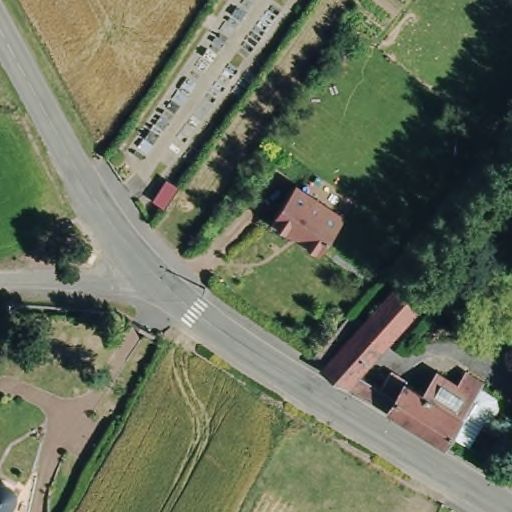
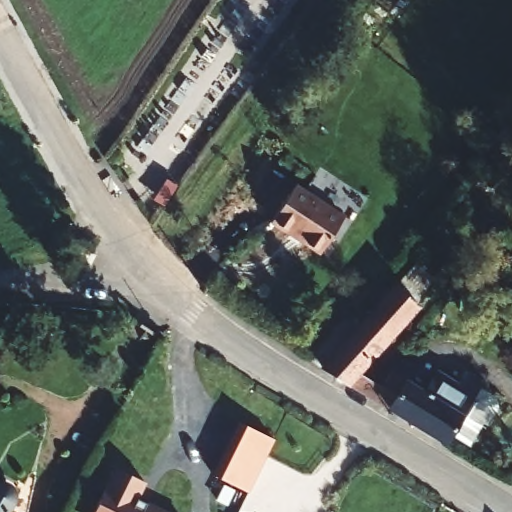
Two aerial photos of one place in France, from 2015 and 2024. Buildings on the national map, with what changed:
unchanged [(316,250),(291,230),(286,237),(265,220),(289,186),(337,220),(316,250)]
unchanged [(425,395),(440,372),(460,384),(465,377),(480,387),(451,433),(446,442),(351,384),(325,368),(327,365),(325,363),(317,356),(348,319),(357,327),(360,329),(418,264),(441,285),(365,369),(360,375),(381,389),(391,374),(425,395)]
unchanged [(451,433),(480,387),(497,397),(500,409),(490,425),(485,423),(470,445),(451,433)]
new [(246,491),(220,478),(217,467),(240,422),(272,438),(246,491)]
new [(159,512),(94,512),(116,467),(146,482),(137,501),(159,512)]
unchanged [(3,482),(6,485),(8,489),(9,493),(9,497),(0,512),(0,481),(2,482),(3,482)]

